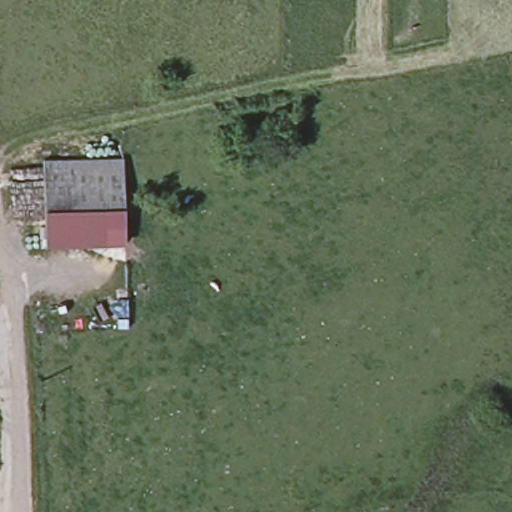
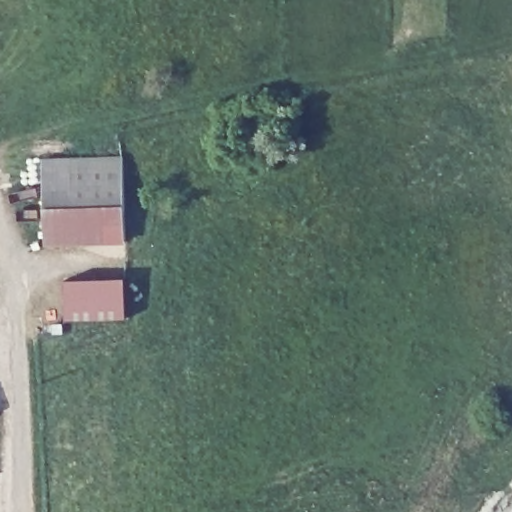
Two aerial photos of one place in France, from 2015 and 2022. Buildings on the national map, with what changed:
unchanged [(94,161),(120,159),(122,208),(97,210),(94,161)]
unchanged [(94,161),(97,210),(67,211),(65,162),(94,161)]
unchanged [(43,213),(40,164),(65,162),(67,211),(43,213)]
unchanged [(67,211),(97,210),(122,208),(124,241),(45,243),(43,213),(67,211)]
new [(126,275),(127,315),(67,317),(65,277),(126,275)]

